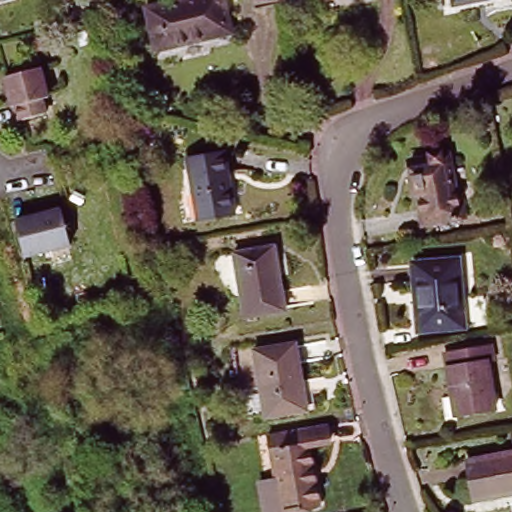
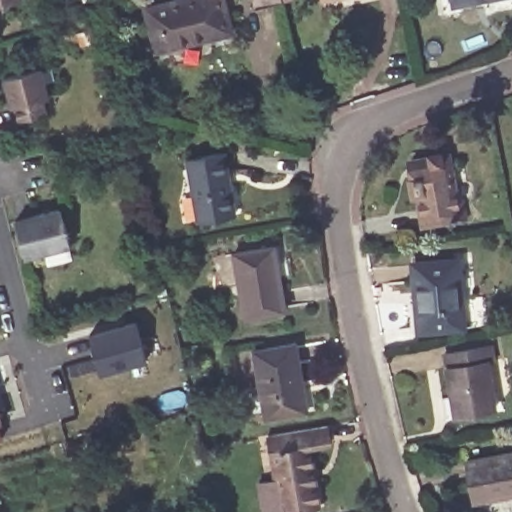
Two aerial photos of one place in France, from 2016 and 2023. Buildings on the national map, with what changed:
unchanged [(19,0),(0,5),(0,0),(19,0)]
unchanged [(189,0),(228,0),(237,35),(160,54),(150,9),(189,0)]
unchanged [(253,10),(252,0),(283,0),(283,4),(253,10)]
unchanged [(494,0),(453,9),(451,0),(494,0)]
unchanged [(35,68),(43,97),(37,100),(41,114),(15,121),(10,106),(7,107),(0,82),(0,78),(35,68)]
unchanged [(417,198),(413,199),(408,177),(413,177),(411,161),(450,154),(459,202),(463,201),(466,220),(422,227),(417,198)]
unchanged [(183,160),(220,155),(230,215),(193,221),(183,160)]
unchanged [(61,210),(70,245),(25,257),(16,221),(61,210)]
unchanged [(235,255),(274,249),(286,311),(246,318),(235,255)]
unchanged [(410,308),(415,307),(412,263),(454,260),(458,310),(468,309),(470,326),(460,326),(460,330),(413,333),(410,308)]
new [(146,360),(100,371),(90,332),(137,320),(146,360)]
unchanged [(439,351),(487,342),(490,356),(484,357),(492,405),(450,412),(439,351)]
unchanged [(255,353),(296,346),(307,412),(266,419),(255,353)]
new [(2,422),(0,423),(0,413),(2,422)]
unchanged [(325,430),(330,450),(309,453),(321,512),(264,512),(260,491),(276,488),(268,440),(305,433),(325,430)]
new [(1,436),(0,436),(0,432),(1,436)]
unchanged [(466,461),(512,453),(512,497),(475,503),(466,461)]

